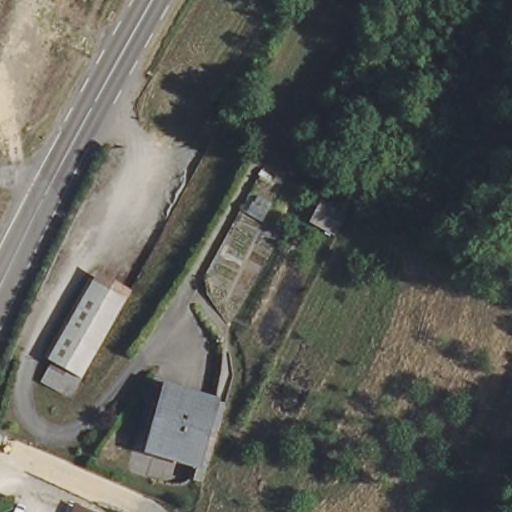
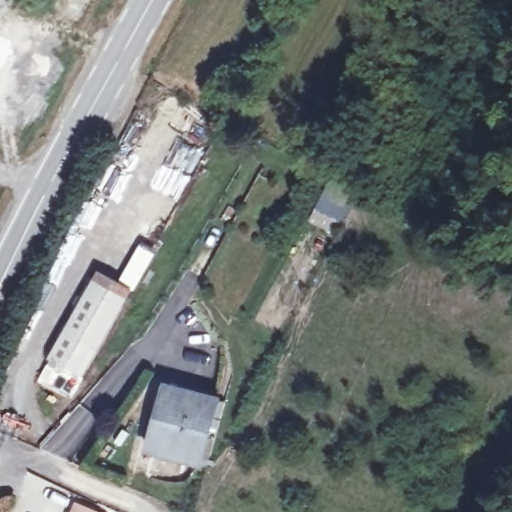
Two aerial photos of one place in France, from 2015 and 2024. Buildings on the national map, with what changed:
unchanged [(314,218),(325,200),(343,211),(333,230),(314,218)]
unchanged [(47,373),(58,350),(50,346),(95,261),(137,282),(81,390),(47,373)]
unchanged [(205,472),(148,456),(155,437),(142,433),(152,399),(158,400),(164,387),(171,389),(225,405),(205,472)]
unchanged [(80,512),(73,512),(74,509),(80,512)]

